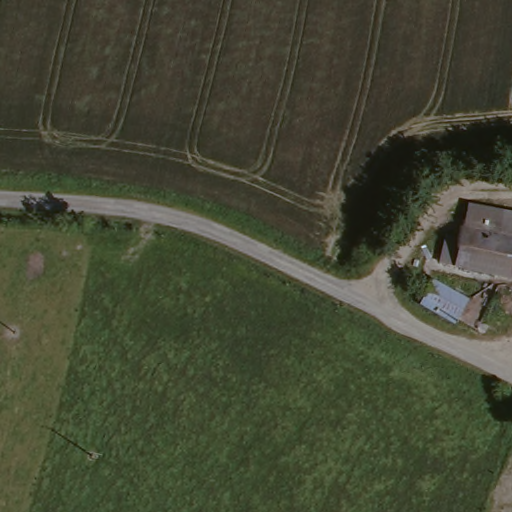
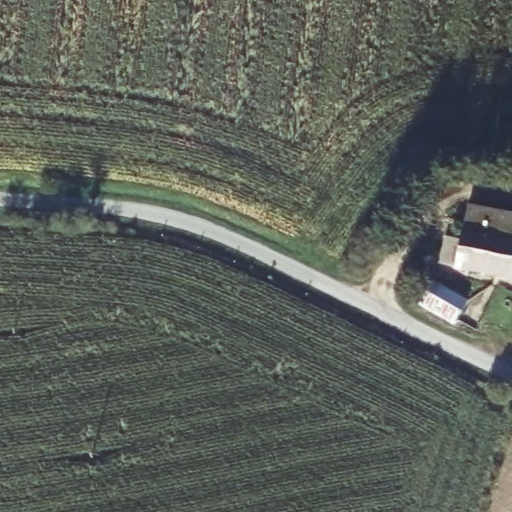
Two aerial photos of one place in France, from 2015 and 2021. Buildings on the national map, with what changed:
unchanged [(436,243),(450,244),(456,212),(512,222),(512,282),(434,267),(436,243)]
unchanged [(433,292),(467,311),(455,330),(419,312),(433,292)]

